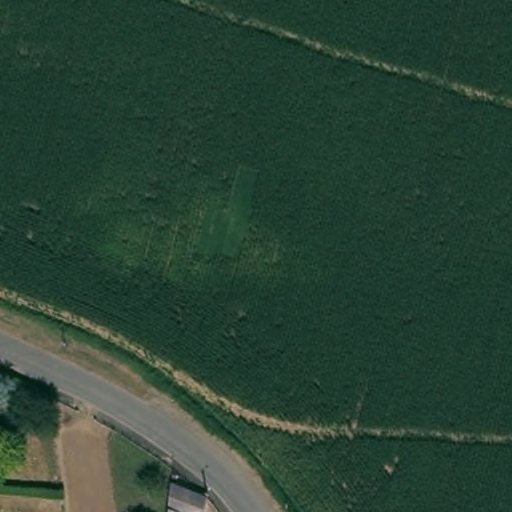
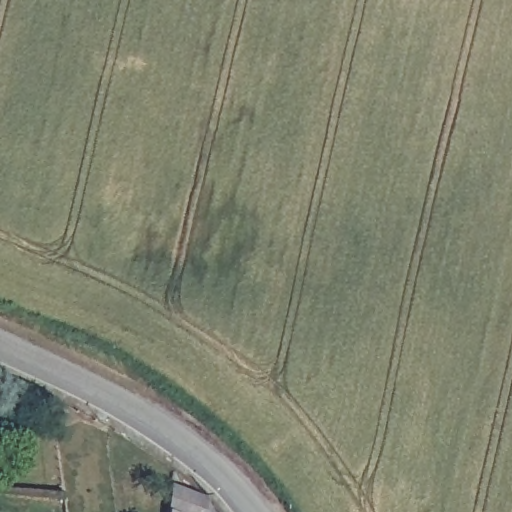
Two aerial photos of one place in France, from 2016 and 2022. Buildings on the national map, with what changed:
unchanged [(171,484),(208,499),(205,512),(168,512),(171,484)]

